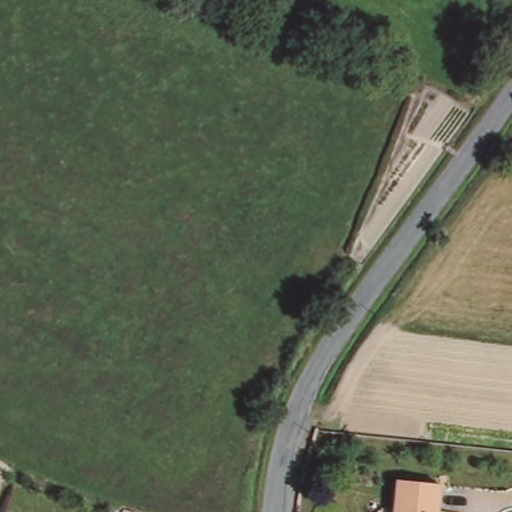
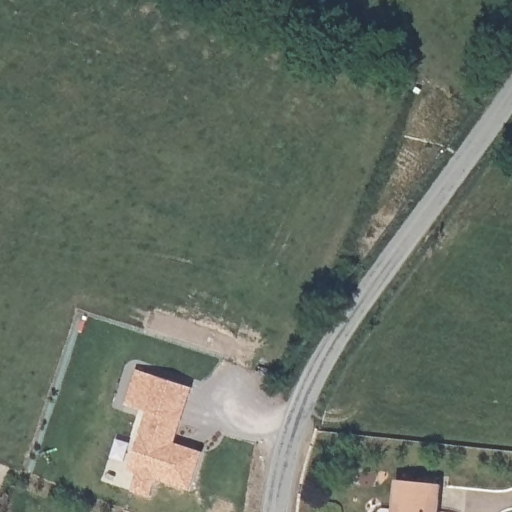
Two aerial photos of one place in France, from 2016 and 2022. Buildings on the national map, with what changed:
new [(139,408),(124,404),(136,368),(150,372),(193,386),(181,422),(174,441),(203,451),(190,489),(156,478),(150,496),(131,490),(138,472),(128,469),(147,411),(139,408)]
unchanged [(441,512),(393,512),(398,482),(444,490),(441,512)]

